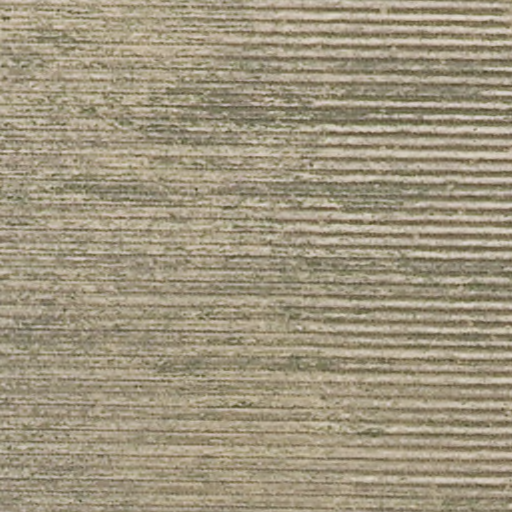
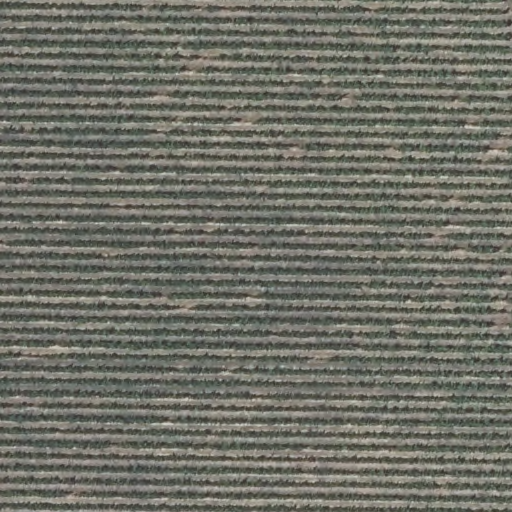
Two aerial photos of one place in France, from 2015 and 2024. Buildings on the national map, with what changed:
[]

